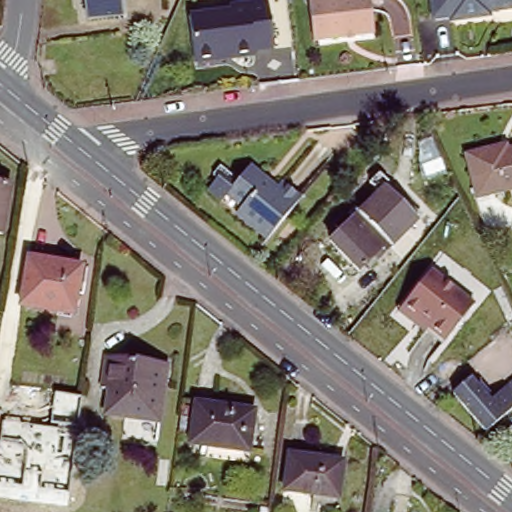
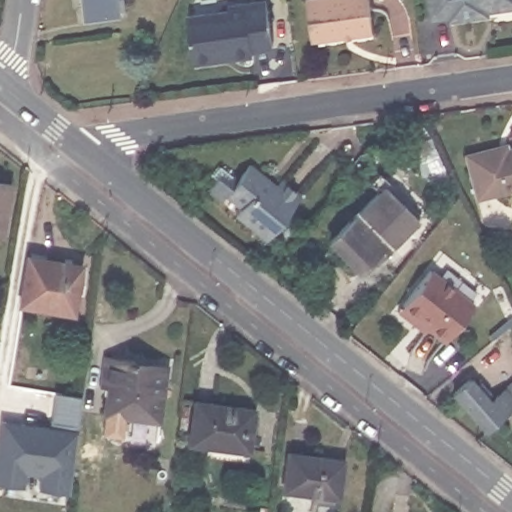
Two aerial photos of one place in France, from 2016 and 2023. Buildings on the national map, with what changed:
unchanged [(90,22),(87,0),(125,0),(126,10),(120,11),(120,17),(90,22)]
unchanged [(311,0),(370,0),(374,30),(315,37),(311,0)]
unchanged [(497,13),(457,17),(457,14),(440,17),(438,0),(512,0),(512,7),(496,9),(497,13)]
unchanged [(188,15),(266,2),(274,51),(197,62),(188,15)]
unchanged [(470,153),(507,145),(508,151),(512,150),(512,189),(479,197),(470,153)]
unchanged [(251,187),(260,177),(272,188),(272,190),(283,199),(289,192),(307,207),(274,250),(245,226),(250,220),(235,207),(232,212),(217,199),(224,191),(220,187),(232,172),(251,187)]
unchanged [(19,187),(10,237),(0,235),(0,183),(19,187)]
unchanged [(397,215),(376,238),(384,247),(372,258),(367,254),(350,270),(325,242),(382,187),(397,215)]
unchanged [(32,261),(85,269),(77,316),(24,307),(32,261)]
unchanged [(394,312),(399,306),(427,271),(470,305),(442,341),(426,327),(421,333),(394,312)]
unchanged [(512,326),(512,328),(511,327),(512,326)]
unchanged [(114,390),(108,390),(112,358),(169,364),(163,421),(111,415),(114,390)]
new [(55,393),(81,398),(77,428),(50,425),(55,393)]
unchanged [(199,408),(260,416),(254,458),(193,451),(199,408)]
new [(1,423),(24,426),(23,431),(31,432),(32,427),(59,431),(77,433),(76,438),(72,465),(69,496),(39,492),(40,477),(24,474),(22,489),(0,486),(0,431),(1,423)]
unchanged [(292,450),(345,457),(340,493),(287,486),(292,450)]

